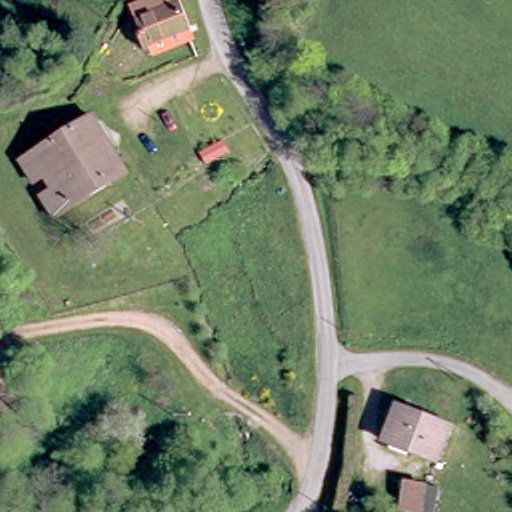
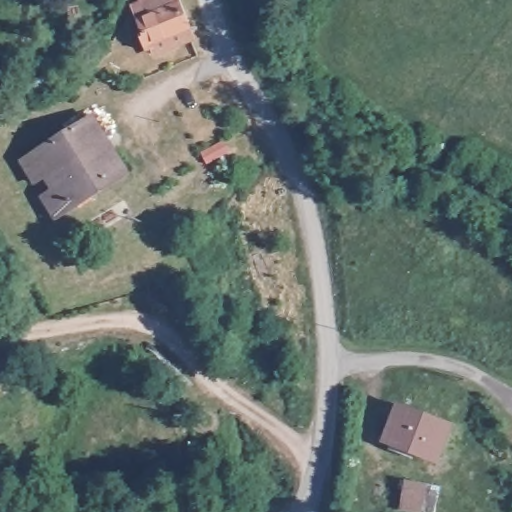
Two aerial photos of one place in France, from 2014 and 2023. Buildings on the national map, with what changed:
unchanged [(145,54),(142,44),(127,6),(137,1),(136,0),(172,0),(182,27),(185,37),(145,54)]
unchanged [(54,215),(40,192),(57,182),(49,169),(33,179),(20,158),(67,127),(65,123),(86,109),(125,169),(54,215)]
unchanged [(203,160),(200,152),(220,142),(228,155),(215,164),(207,168),(203,160)]
unchanged [(440,455),(422,447),(420,451),(372,430),(387,393),(434,413),(432,416),(452,425),(440,455)]
unchanged [(409,512),(393,506),(402,478),(419,483),(411,512),(409,512)]

